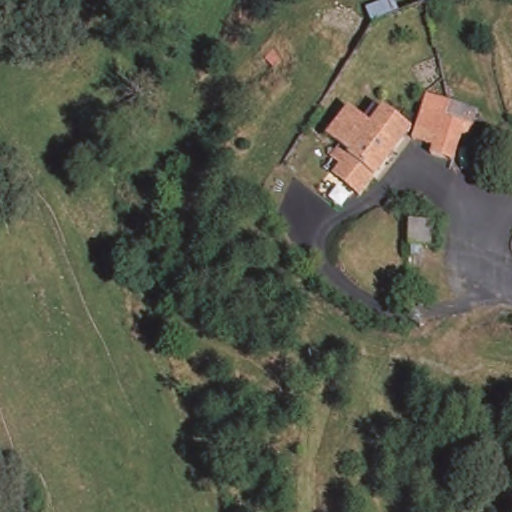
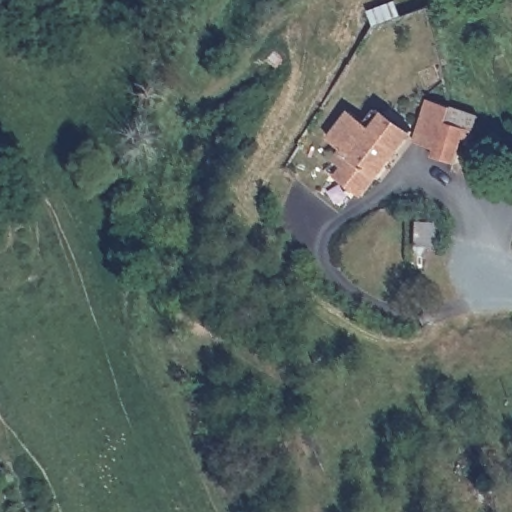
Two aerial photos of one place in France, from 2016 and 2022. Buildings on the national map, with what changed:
unchanged [(462,110),(473,115),(470,125),(457,162),(436,156),(438,149),(419,143),(422,134),(433,100),(453,106),(458,109),(462,110)]
unchanged [(337,158),(346,147),(334,137),(333,136),(354,110),(375,125),(389,110),(400,117),(416,130),(379,179),(373,176),(369,182),(337,158)]
unchanged [(438,234),(439,255),(416,255),(414,234),(438,234)]

